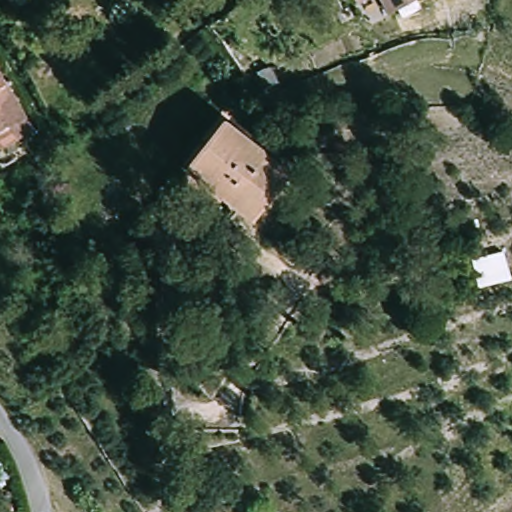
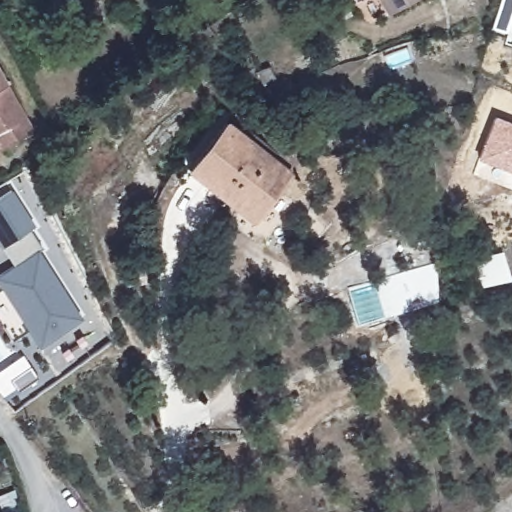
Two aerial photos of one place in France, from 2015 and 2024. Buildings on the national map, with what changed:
unchanged [(369,0),(417,0),(387,23),(369,0)]
unchanged [(32,132),(0,148),(0,147),(0,72),(32,132)]
new [(512,172),(477,159),(494,115),(512,122),(512,172)]
unchanged [(232,205),(189,166),(230,120),(288,173),(261,203),(247,219),(232,205)]
new [(12,190),(35,226),(30,229),(42,247),(38,250),(83,320),(40,347),(30,331),(13,341),(0,321),(0,290),(2,288),(0,285),(0,275),(7,271),(12,262),(0,243),(0,198),(12,190)]
new [(503,251),(510,280),(479,287),(472,259),(503,251)]
unchanged [(127,271),(146,271),(146,285),(127,285),(127,271)]

